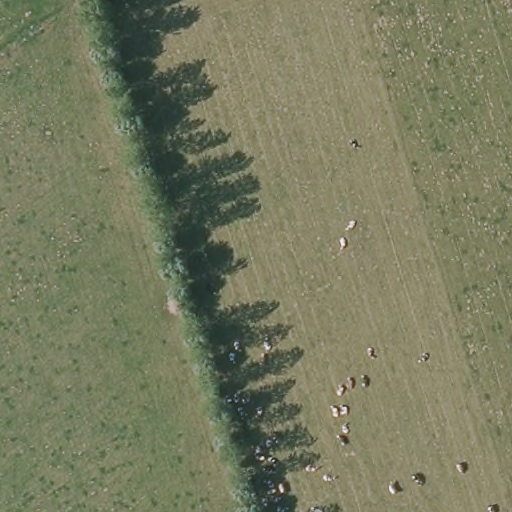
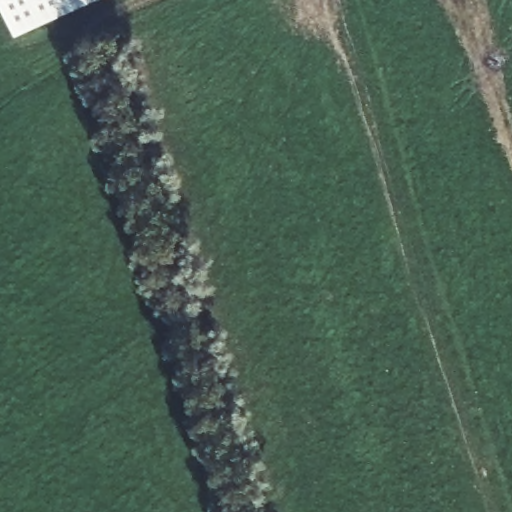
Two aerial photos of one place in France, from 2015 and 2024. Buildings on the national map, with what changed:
new [(18,31),(4,0),(82,0),(18,31)]

